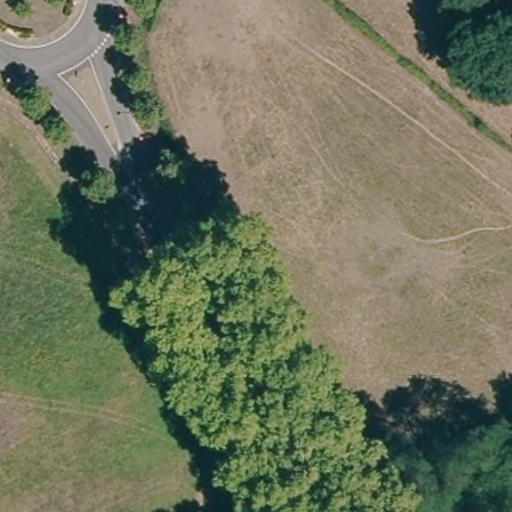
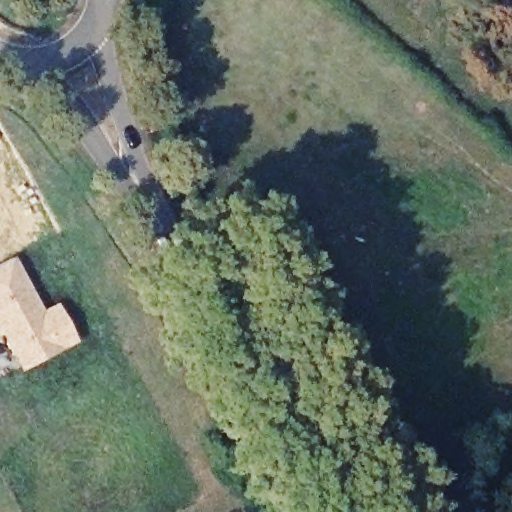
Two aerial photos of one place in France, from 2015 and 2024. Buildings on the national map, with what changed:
new [(0,336),(0,265),(12,258),(41,311),(56,304),(76,344),(18,373),(0,336)]

